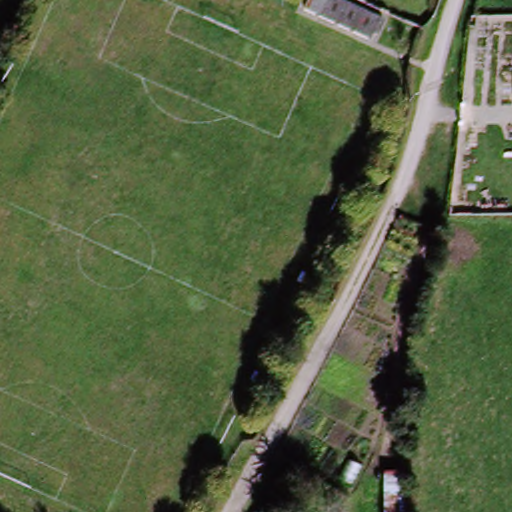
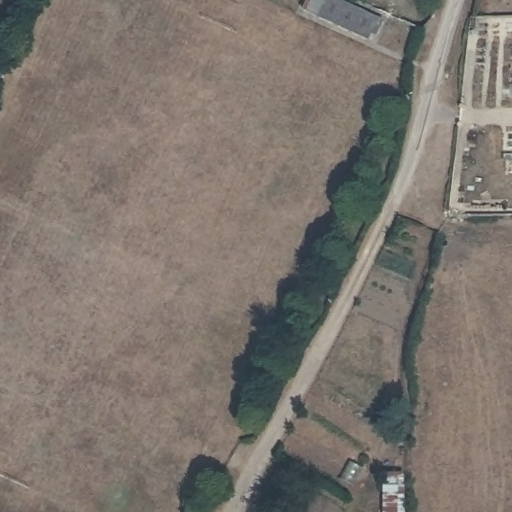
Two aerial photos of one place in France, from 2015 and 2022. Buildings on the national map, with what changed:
unchanged [(385,26),(372,51),(302,20),(311,0),(323,0),(385,26)]
unchanged [(393,472),(393,428),(407,427),(407,512),(383,512),(383,474),(393,472)]

